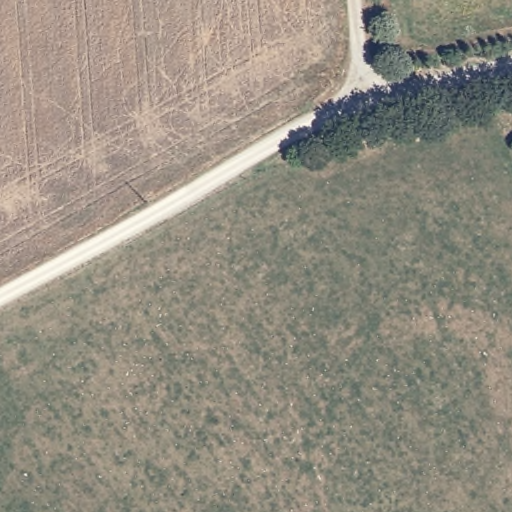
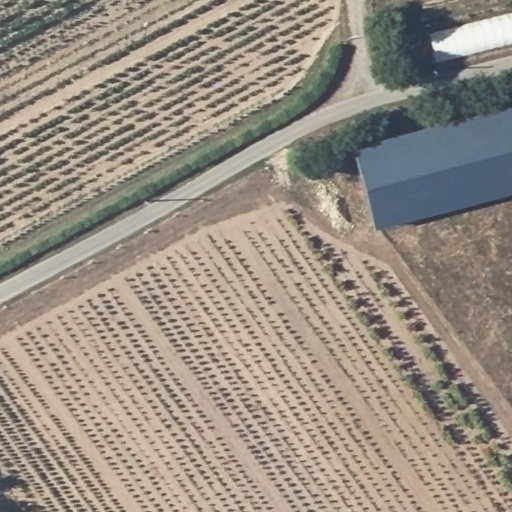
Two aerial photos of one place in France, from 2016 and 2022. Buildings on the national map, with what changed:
new [(512,191),(370,229),(348,146),(512,103),(512,191)]

